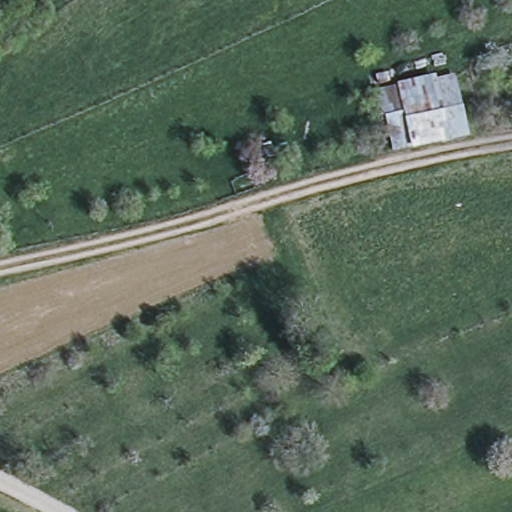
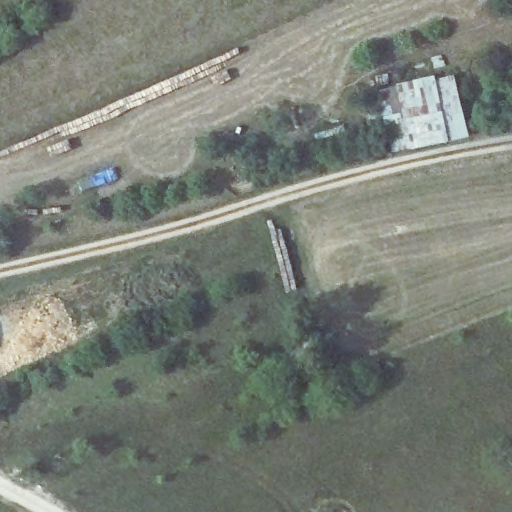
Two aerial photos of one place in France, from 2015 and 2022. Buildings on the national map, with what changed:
unchanged [(419,78),(436,75),(441,96),(455,93),(464,130),(385,148),(372,89),(419,78)]

